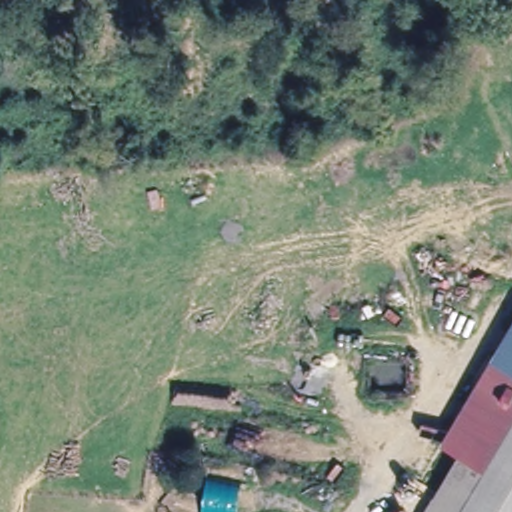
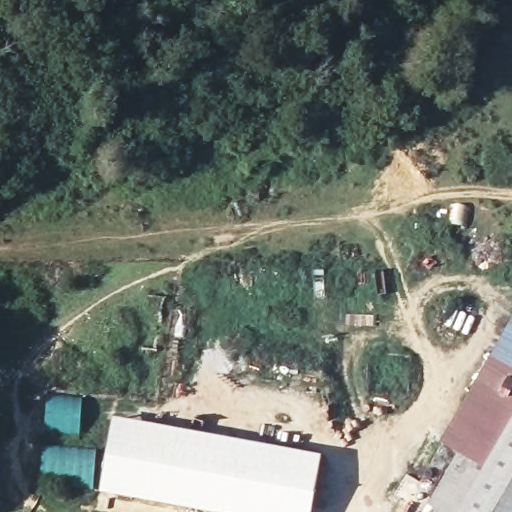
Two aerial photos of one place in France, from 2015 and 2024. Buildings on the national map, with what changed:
unchanged [(512,322),(512,366),(500,359),(492,355),(512,322)]
new [(441,442),(492,355),(500,359),(512,366),(512,426),(487,468),(465,455),(429,512),(423,512),(457,453),(441,442)]
demolished [(441,443),(492,355),(512,365),(512,420),(486,463),(463,452),(441,443)]
new [(45,393),(82,397),(80,435),(42,432),(45,393)]
new [(321,456),(311,512),(207,512),(182,508),(99,494),(112,418),(321,456)]
unchanged [(487,468),(512,426),(512,512),(429,512),(465,455),(487,468)]
new [(98,448),(95,487),(41,483),(44,444),(98,448)]

